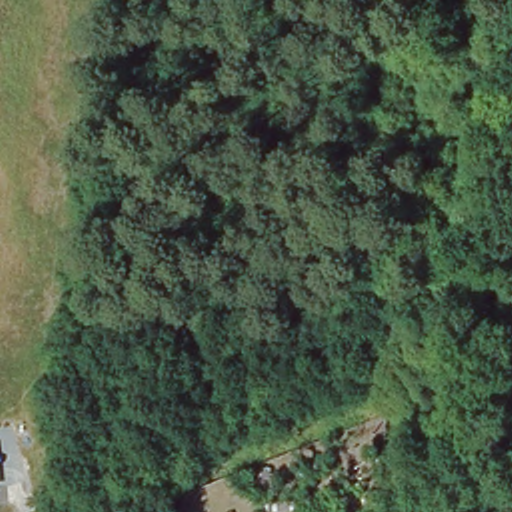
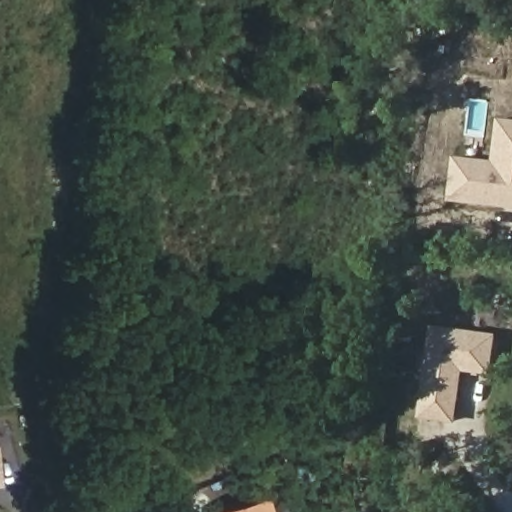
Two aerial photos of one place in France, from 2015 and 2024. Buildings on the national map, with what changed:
new [(450,201),(454,156),(493,160),(498,118),(512,119),(512,208),(450,201)]
new [(432,324),(497,334),(492,375),(464,371),(457,423),(419,418),(432,324)]
new [(350,452),(378,456),(377,461),(381,462),(380,472),(370,471),(368,476),(347,473),(350,452)]
unchanged [(0,475),(2,488),(0,488),(0,475)]
new [(295,501),(296,512),(265,512),(265,504),(295,501)]

